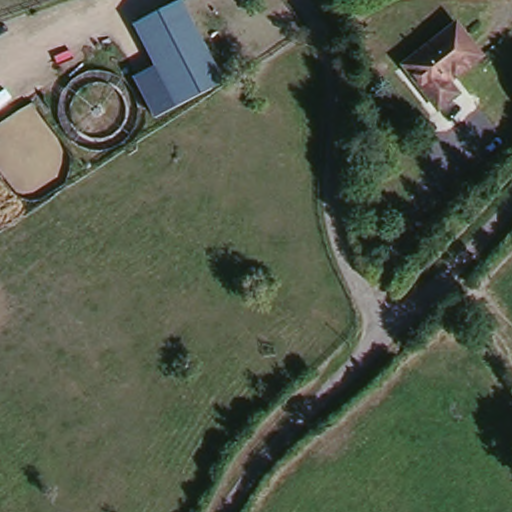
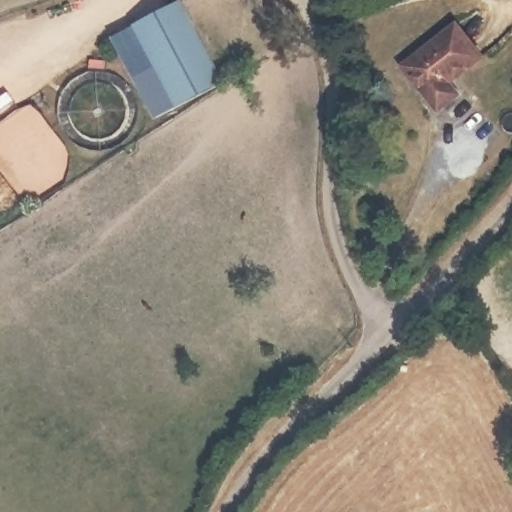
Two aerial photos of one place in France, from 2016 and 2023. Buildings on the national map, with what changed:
unchanged [(182,0),(222,82),(176,106),(153,118),(133,78),(154,66),(134,26),(182,0)]
unchanged [(403,60),(454,15),(483,55),(454,79),(464,95),(438,103),(403,60)]

